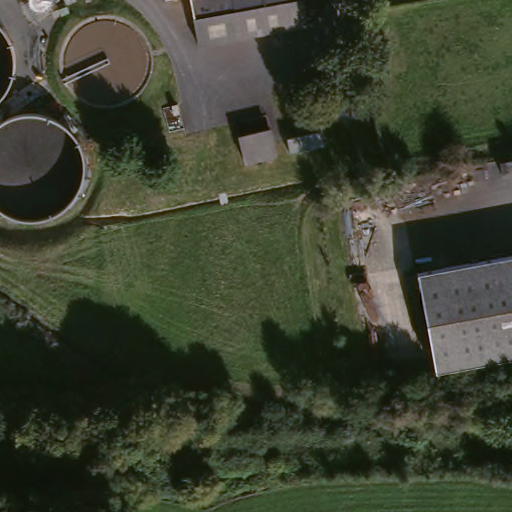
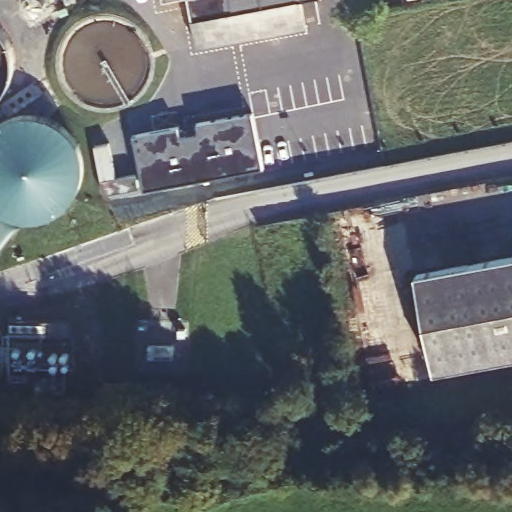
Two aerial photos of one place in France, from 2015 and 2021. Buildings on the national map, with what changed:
unchanged [(27,20),(13,0),(48,0),(50,4),(27,20)]
unchanged [(199,0),(297,0),(202,19),(199,0)]
unchanged [(206,44),(202,19),(297,0),(310,0),(314,24),(206,44)]
unchanged [(414,0),(419,0),(414,1),(414,0)]
new [(178,127),(180,137),(198,134),(197,124),(253,115),(262,172),(142,191),(132,134),(178,127)]
demolished [(273,130),(279,157),(250,164),(244,136),(273,130)]
unchanged [(512,359),(438,374),(419,277),(512,258),(512,359)]

